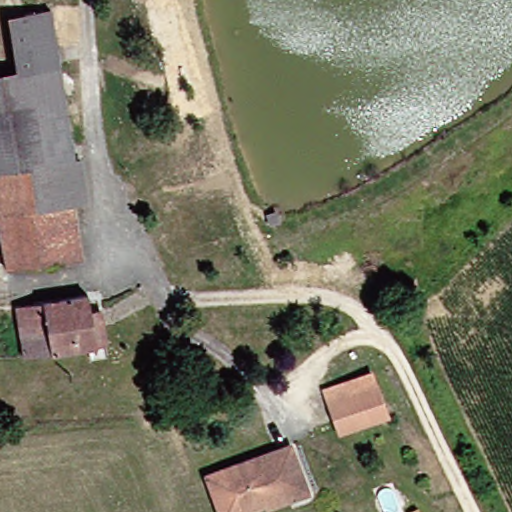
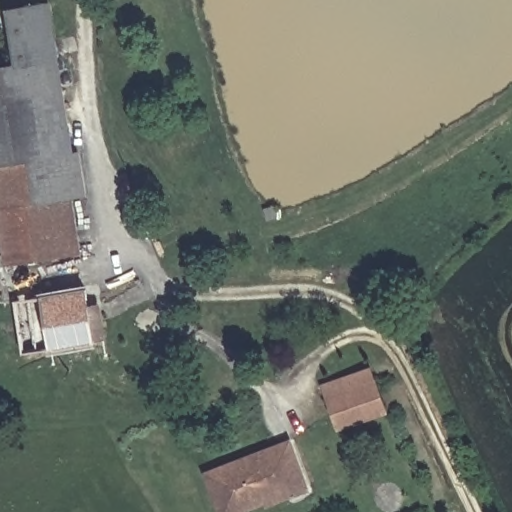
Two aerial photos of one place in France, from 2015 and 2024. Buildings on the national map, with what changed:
unchanged [(0,77),(23,74),(11,12),(53,5),(68,95),(0,105),(0,77)]
unchanged [(88,154),(96,199),(77,201),(84,260),(15,267),(0,186),(0,105),(68,95),(78,155),(88,154)]
unchanged [(93,292),(95,297),(108,295),(113,343),(101,345),(33,354),(26,302),(93,292)]
unchanged [(351,431),(336,402),(380,381),(396,409),(351,431)]
unchanged [(289,485),(269,495),(273,501),(248,512),(224,512),(210,480),(291,442),(314,487),(295,496),(289,485)]

